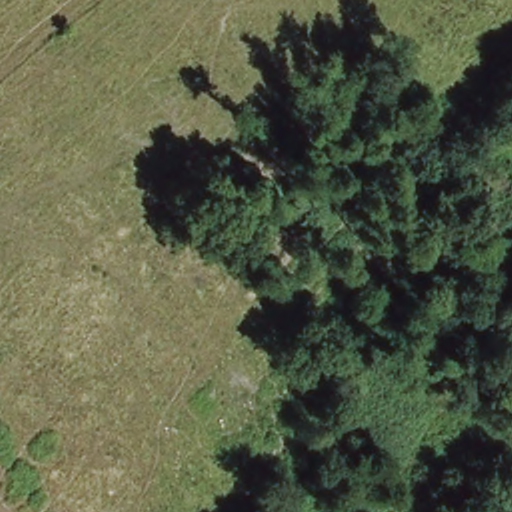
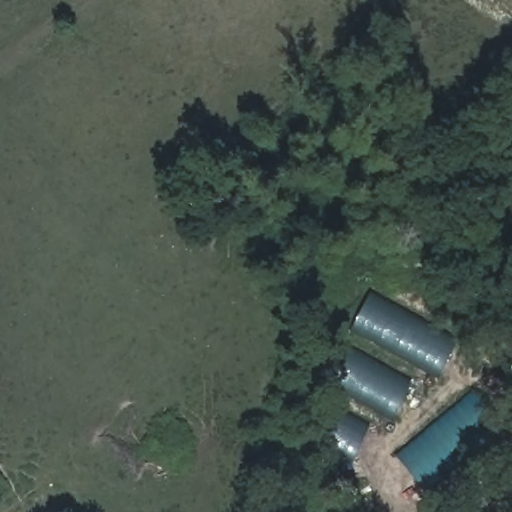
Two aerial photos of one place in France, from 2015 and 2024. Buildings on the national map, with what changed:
new [(348,331),(370,291),(457,339),(436,379),(348,331)]
new [(328,387),(348,346),(412,381),(391,420),(328,387)]
new [(421,485),(396,456),(471,393),(496,422),(421,485)]
new [(307,442),(325,403),(370,421),(353,462),(307,442)]

